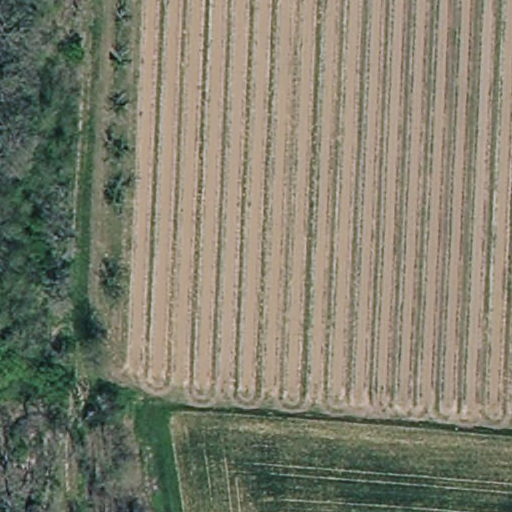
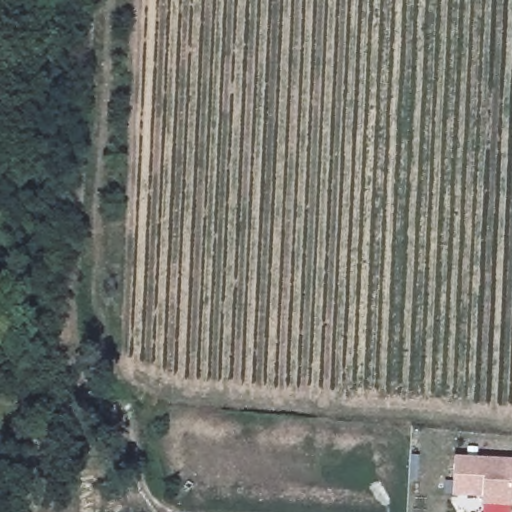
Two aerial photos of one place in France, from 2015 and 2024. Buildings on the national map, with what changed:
new [(482,507),(482,499),(453,496),(454,458),(512,460),(512,508),(482,507)]

